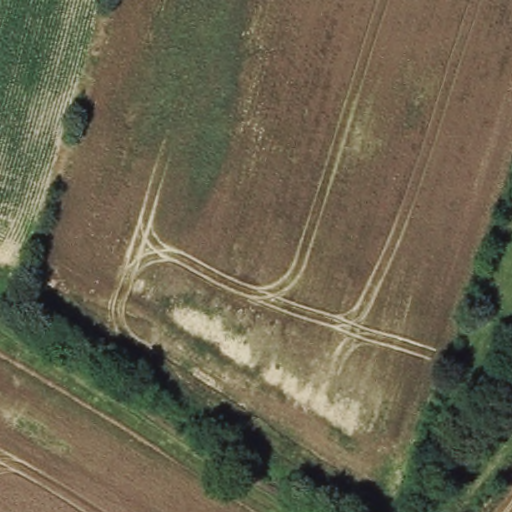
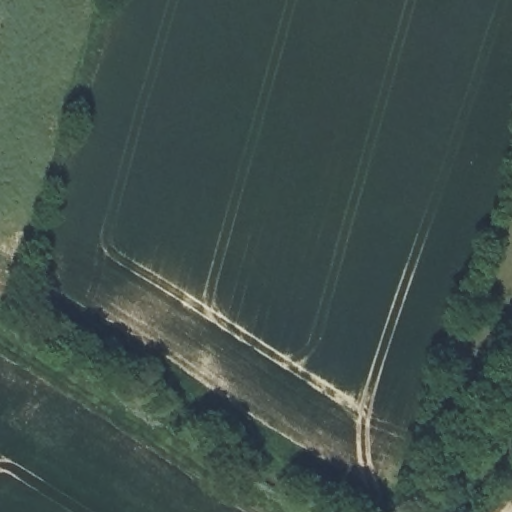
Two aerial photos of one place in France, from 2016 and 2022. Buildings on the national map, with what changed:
[]

